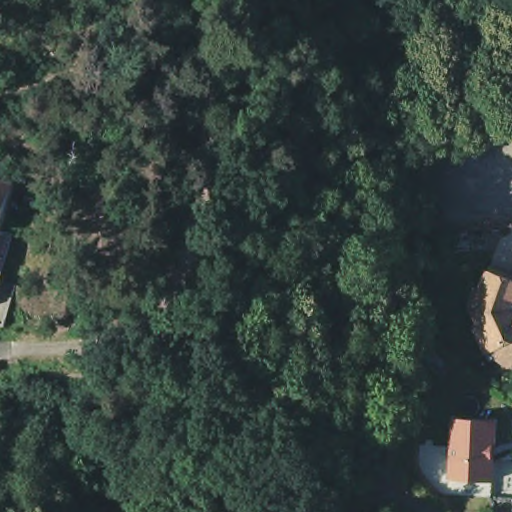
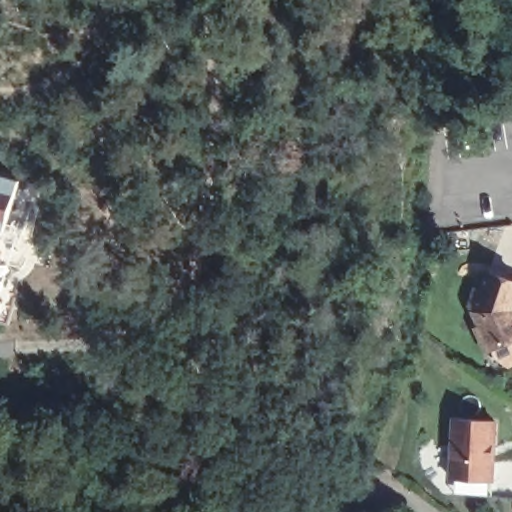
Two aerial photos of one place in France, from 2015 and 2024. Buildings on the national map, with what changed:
unchanged [(23,245),(12,293),(25,297),(15,338),(0,334),(0,189),(23,195),(12,243),(23,245)]
unchanged [(471,327),(474,325),(466,306),(473,284),(482,286),(487,267),(512,277),(512,340),(482,354),(471,327)]
unchanged [(445,476),(448,416),(488,419),(485,478),(484,492),(448,489),(444,483),(445,476)]

